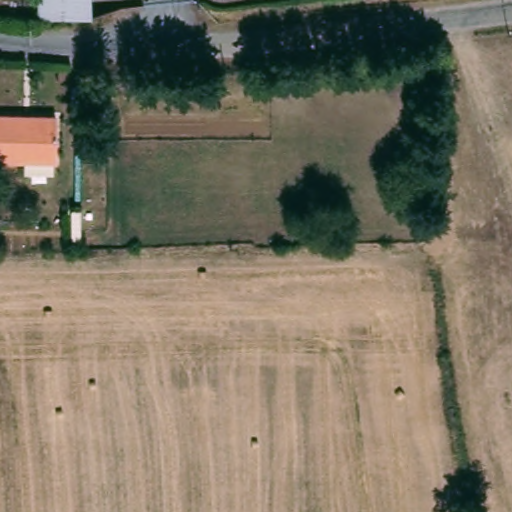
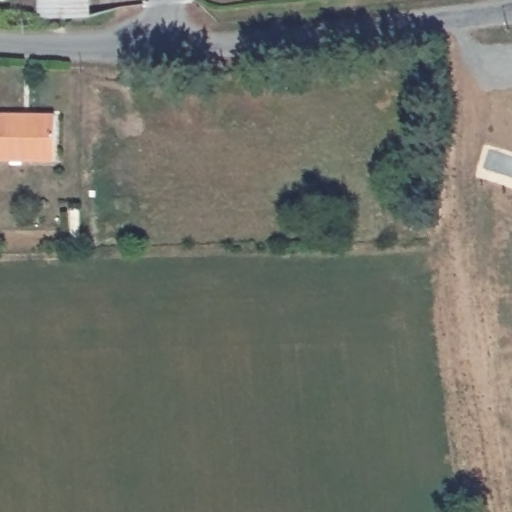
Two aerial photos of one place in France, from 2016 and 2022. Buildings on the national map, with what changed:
unchanged [(68,0),(68,17),(48,18),(47,0),(68,0)]
unchanged [(227,80),(215,80),(216,71),(225,70),(227,69),(227,80)]
unchanged [(57,164),(0,162),(0,118),(58,120),(57,164)]

